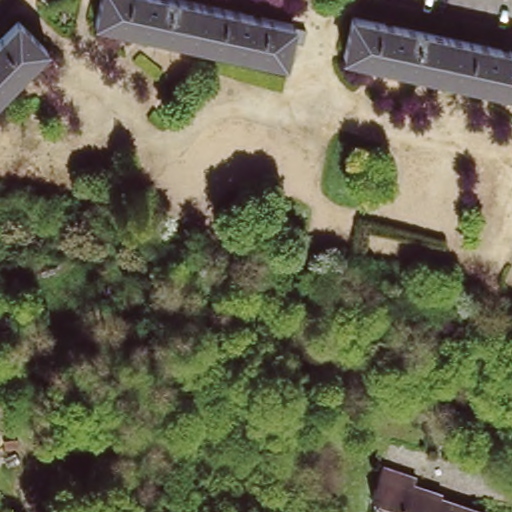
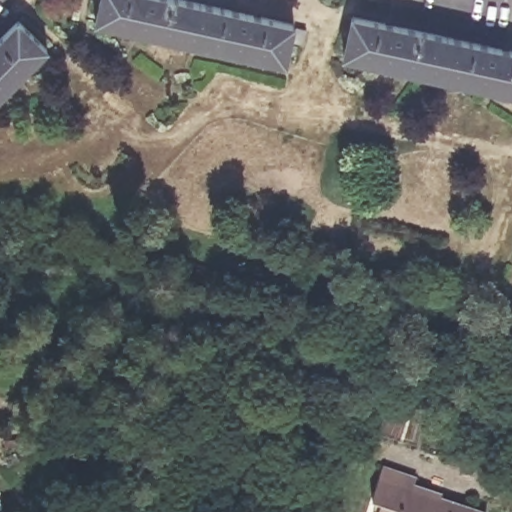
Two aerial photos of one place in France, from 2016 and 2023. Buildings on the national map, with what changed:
unchanged [(182,0),(288,23),(279,63),(90,22),(95,0),(182,0)]
unchanged [(348,16),(512,51),(512,94),(339,56),(348,16)]
unchanged [(45,47),(0,94),(0,36),(15,21),(45,47)]
unchanged [(287,39),(290,25),(300,27),(297,41),(287,39)]
unchanged [(418,471),(417,481),(488,497),(486,512),(377,512),(377,504),(371,503),(376,462),(418,471)]

